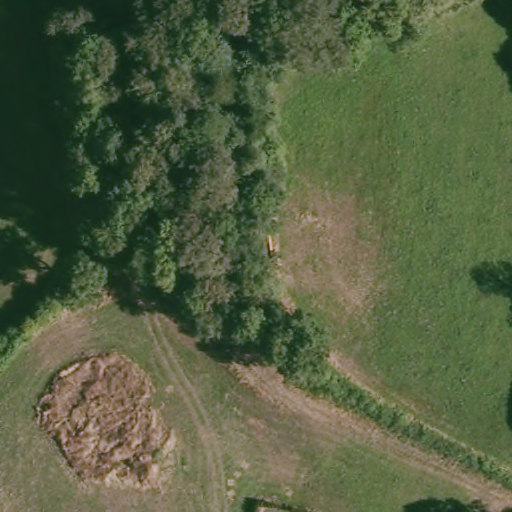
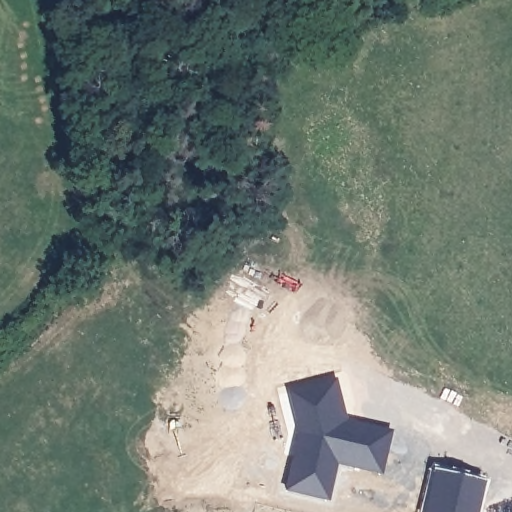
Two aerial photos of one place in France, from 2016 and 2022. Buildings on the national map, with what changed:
new [(293,390),(305,387),(340,380),(347,410),(343,411),(345,420),(395,431),(385,472),(340,461),(331,498),(289,488),(303,430),(293,390)]
new [(437,471),(486,483),(479,512),(428,512),(437,471)]

